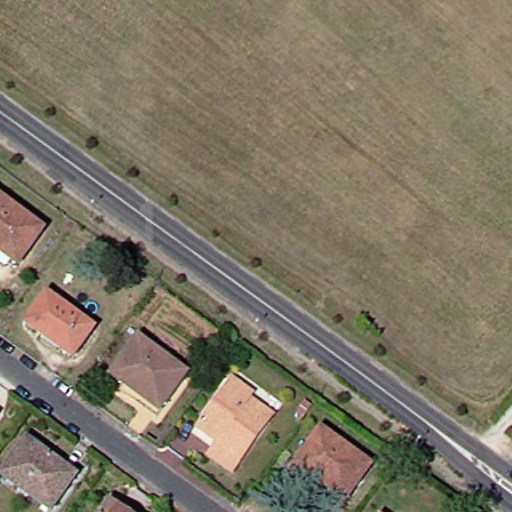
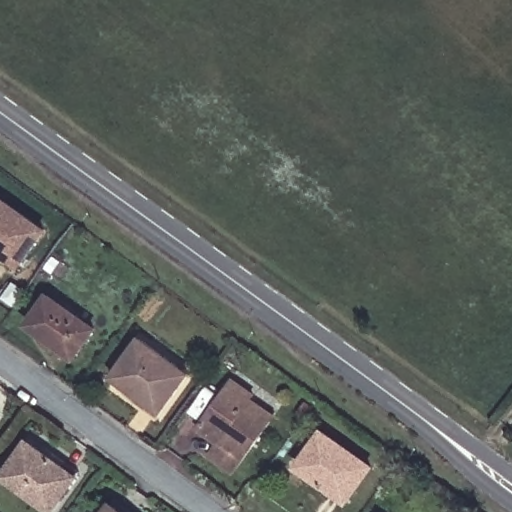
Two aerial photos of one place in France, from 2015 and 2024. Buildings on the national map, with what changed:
unchanged [(4,252),(7,249),(0,244),(0,204),(6,196),(53,230),(30,261),(25,268),(4,252)]
unchanged [(54,296),(100,329),(79,357),(33,325),(54,296)]
unchanged [(144,401),(147,397),(120,377),(146,340),(192,375),(168,408),(163,415),(144,401)]
unchanged [(202,425),(233,380),(253,395),(250,399),(273,416),(271,420),(232,473),(210,456),(219,443),(198,429),(202,425)]
unchanged [(325,489),(327,485),(302,467),(327,432),(375,467),(352,498),(347,505),(325,489)]
unchanged [(60,460),(62,456),(85,473),(80,480),(57,511),(8,475),(33,441),(60,460)]
unchanged [(127,512),(112,512),(117,505),(127,512)]

